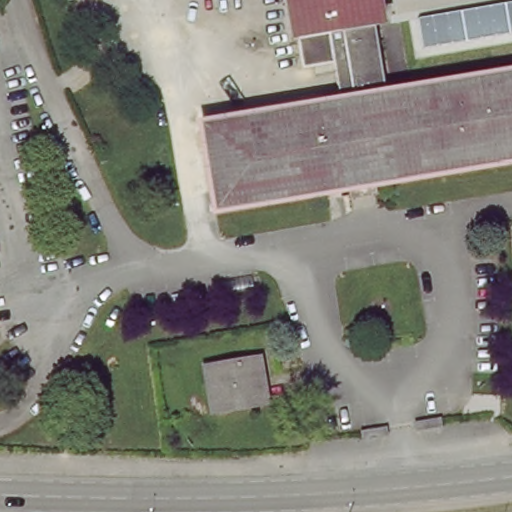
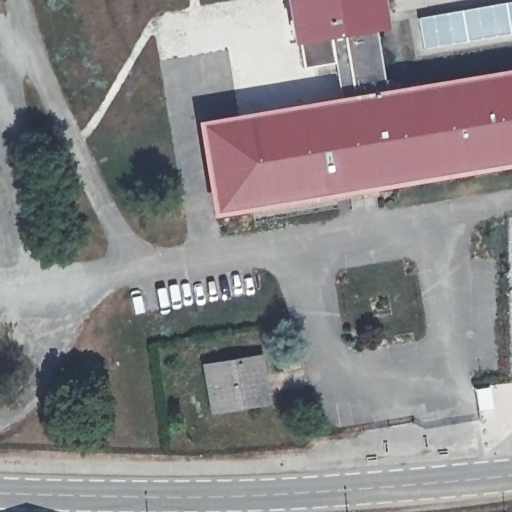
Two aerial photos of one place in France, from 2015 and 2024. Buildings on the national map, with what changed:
unchanged [(395,89),(512,68),(512,157),(217,206),(203,121),(338,99),(326,27),(296,32),(290,0),(379,0),(395,89)]
unchanged [(423,47),(419,18),(512,2),(512,33),(423,47)]
unchanged [(252,407),(214,413),(204,364),(257,356),(261,376),(267,405),(252,407)]

